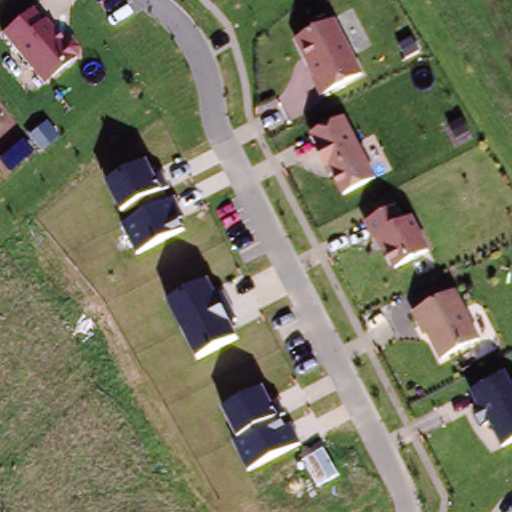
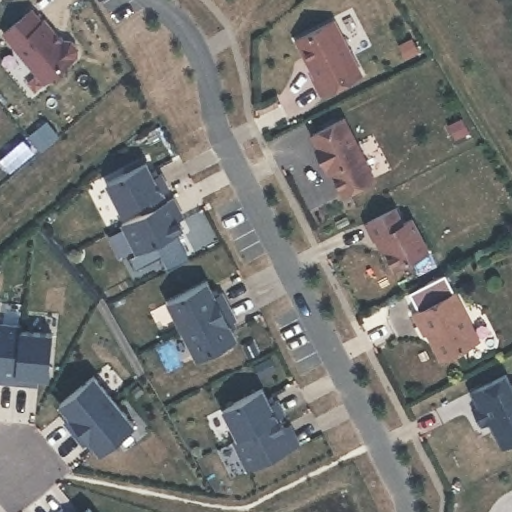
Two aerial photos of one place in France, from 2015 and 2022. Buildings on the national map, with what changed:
unchanged [(42,19),(45,16),(62,37),(72,37),(79,48),(77,59),(45,84),(3,32),(33,7),(42,19)]
unchanged [(362,75),(323,96),(294,41),(334,19),(362,75)]
unchanged [(377,179),(342,198),(310,135),(346,116),(377,179)]
unchanged [(147,160),(160,192),(121,210),(107,178),(147,160)]
unchanged [(171,197),(185,229),(135,251),(121,220),(171,197)]
unchanged [(404,221),(414,215),(431,251),(394,271),(379,242),(375,243),(365,223),(397,206),(404,221)]
unchanged [(210,280),(235,337),(194,356),(167,299),(210,280)]
unchanged [(480,338),(440,360),(415,312),(455,290),(480,338)]
new [(24,330),(23,330),(18,383),(3,382),(4,373),(0,373),(0,323),(24,325),(24,330)]
new [(23,330),(24,330),(55,333),(51,377),(34,376),(34,384),(18,383),(23,330)]
unchanged [(512,389),(512,442),(502,447),(490,420),(482,425),(475,409),(477,407),(470,391),(506,373),(512,389)]
new [(96,375),(117,400),(76,433),(67,422),(73,417),(62,403),(96,375)]
unchanged [(264,386),(279,417),(284,414),(297,441),(247,466),(232,442),(237,437),(224,407),(264,386)]
new [(117,400),(137,425),(103,453),(92,440),(86,445),(76,433),(117,400)]

